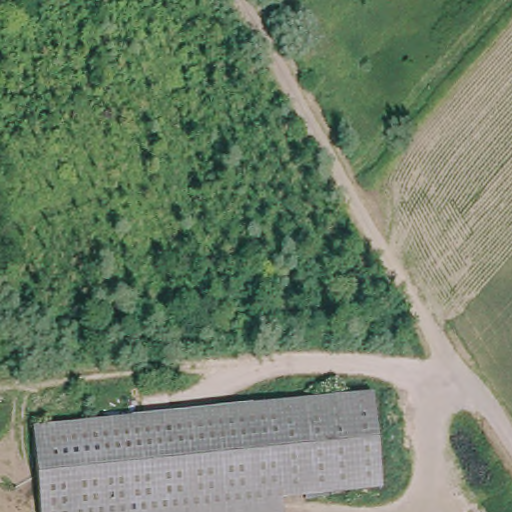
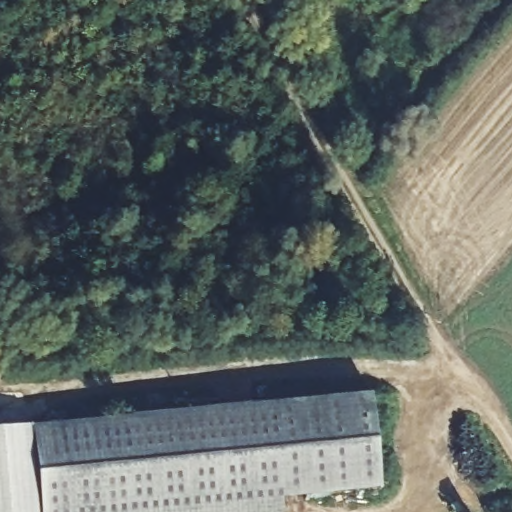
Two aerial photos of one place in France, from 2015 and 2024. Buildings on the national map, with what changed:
unchanged [(353,394),(372,392),(377,484),(378,488),(375,489),(287,499),(280,500),(282,508),(282,512),(39,512),(31,423),(353,394)]
new [(39,512),(0,512),(0,426),(31,423),(39,512)]

